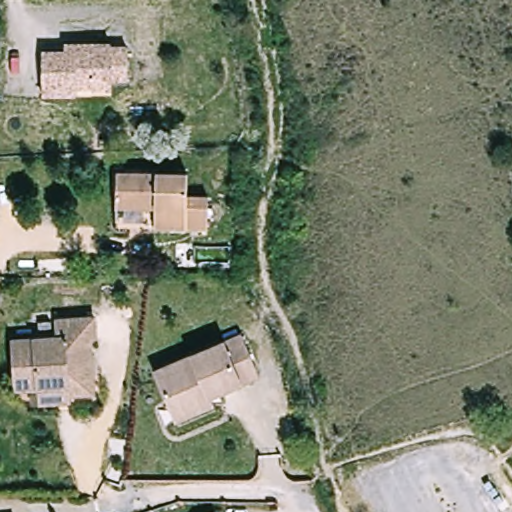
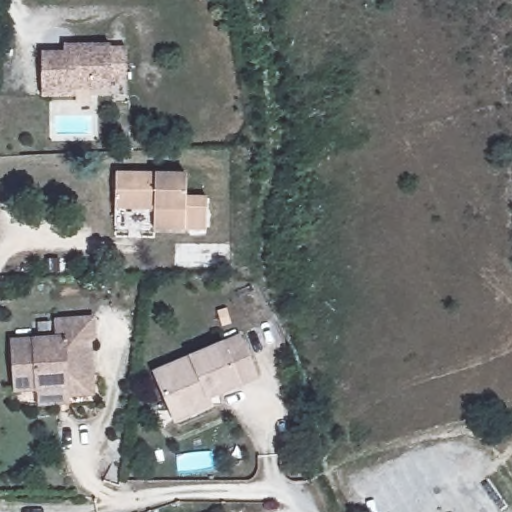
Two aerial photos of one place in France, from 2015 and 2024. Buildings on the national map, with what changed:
unchanged [(81,92),(81,99),(48,99),(47,56),(80,56),(80,49),(116,49),(116,51),(132,51),(132,84),(116,84),(116,92),(81,92)]
unchanged [(191,177),(191,197),(210,199),(209,232),(159,230),(159,211),(122,210),(122,175),(191,177)]
unchanged [(39,403),(39,388),(19,389),(16,338),(61,336),(61,319),(99,317),(99,340),(94,340),(96,367),(96,393),(72,395),(72,403),(39,403)]
unchanged [(175,418),(170,407),(154,370),(239,334),(257,376),(207,397),(210,403),(175,418)]

